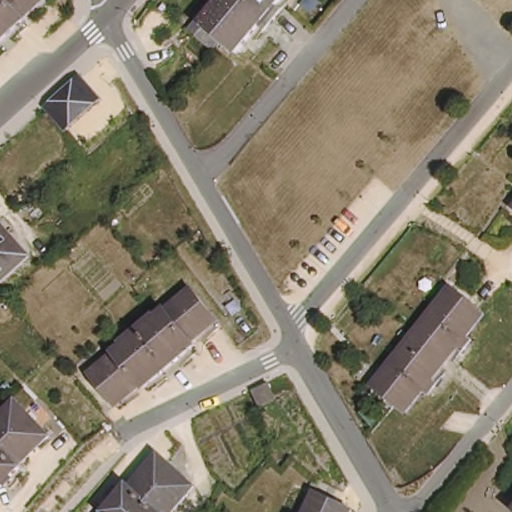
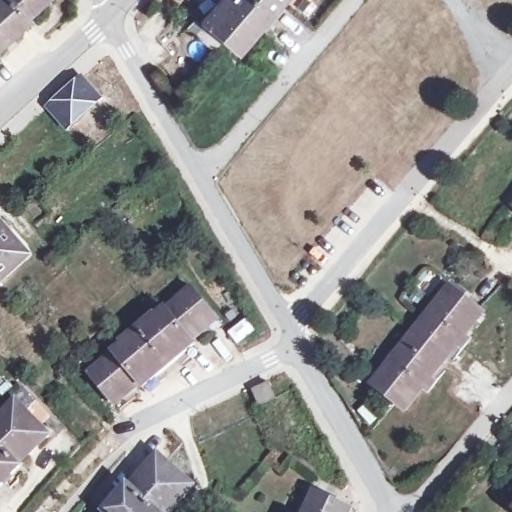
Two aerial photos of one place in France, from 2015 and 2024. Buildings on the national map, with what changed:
unchanged [(52,0),(35,15),(40,22),(31,31),(26,26),(0,51),(0,0),(52,0)]
unchanged [(260,22),(238,48),(205,19),(221,0),(278,0),(277,1),(282,6),(265,26),(260,22)]
unchanged [(100,100),(67,128),(47,107),(81,77),(100,100)]
unchanged [(4,226),(30,256),(27,258),(0,283),(0,222),(4,226)]
unchanged [(430,390),(425,386),(407,408),(373,381),(452,285),(485,311),(467,333),(472,337),(463,348),(458,344),(435,374),(440,378),(430,390)]
unchanged [(110,356),(123,344),(122,342),(157,313),(159,315),(193,287),(204,300),(218,318),(222,323),(213,330),(210,325),(193,338),(193,339),(196,342),(195,343),(200,348),(191,355),(187,350),(153,378),(157,383),(148,390),(145,385),(143,386),(140,382),(134,387),(124,396),(128,401),(119,408),(115,403),(106,392),(90,372),(110,356)]
unchanged [(16,400),(43,429),(49,434),(41,442),(19,464),(21,465),(11,475),(18,481),(12,487),(5,481),(0,486),(0,416),(16,400)]
unchanged [(107,511),(115,501),(113,499),(120,493),(121,494),(130,484),(131,486),(136,481),(148,466),(152,462),(160,454),(165,459),(196,485),(195,487),(174,512),(108,512),(107,511)]
unchanged [(311,498),(315,490),(330,497),(351,508),(357,510),(356,512),(305,512),(311,498)]

